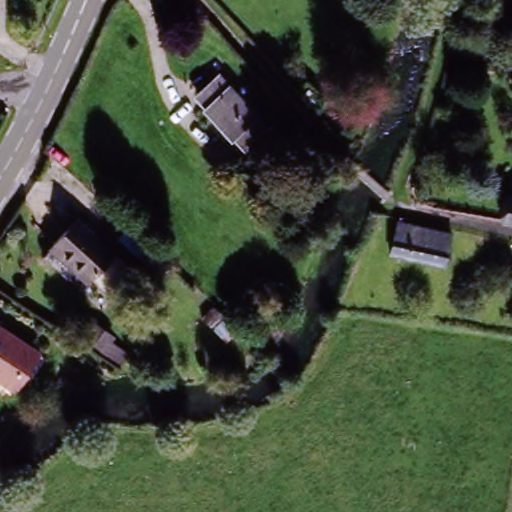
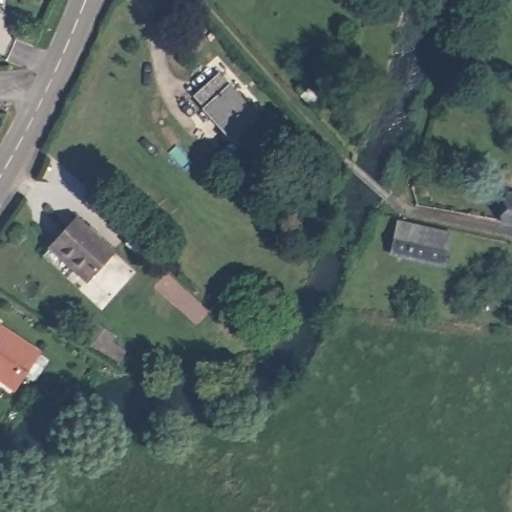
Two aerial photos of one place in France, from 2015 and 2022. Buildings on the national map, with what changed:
unchanged [(232,141),(210,108),(201,95),(225,80),(234,91),(257,124),(267,137),(242,155),(232,141)]
unchanged [(502,218),(507,195),(512,197),(512,220),(502,218)]
unchanged [(402,223),(453,235),(447,265),(396,255),(402,223)]
unchanged [(95,283),(56,251),(80,224),(118,256),(95,283)]
unchanged [(7,393),(0,386),(0,327),(37,365),(7,393)]

